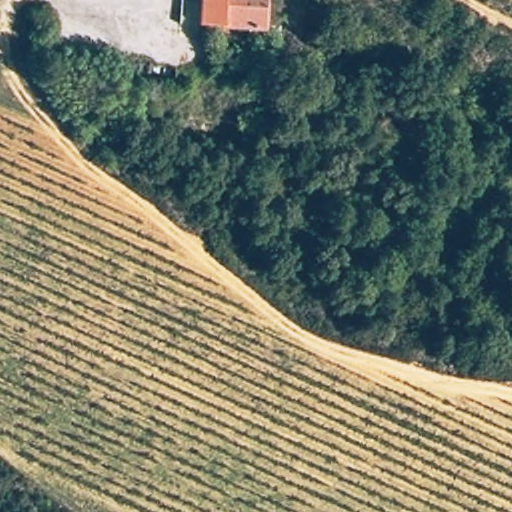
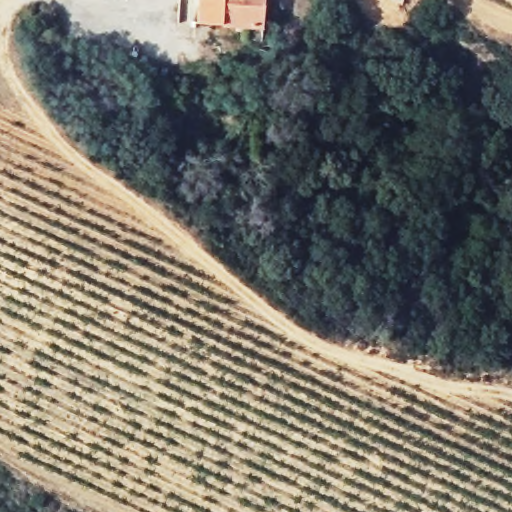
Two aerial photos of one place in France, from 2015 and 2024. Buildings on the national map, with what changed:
unchanged [(221,27),(195,26),(197,0),(265,0),(263,31),(221,27)]

